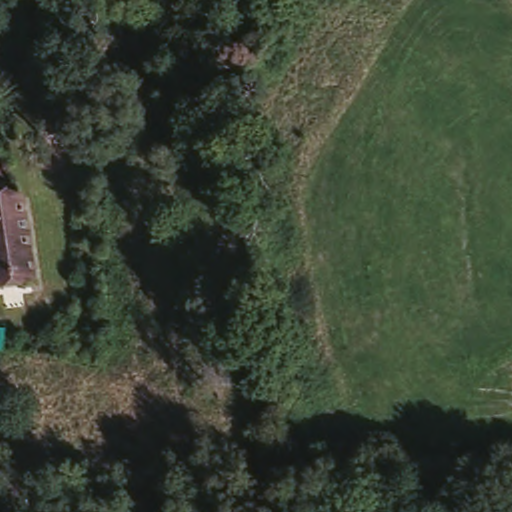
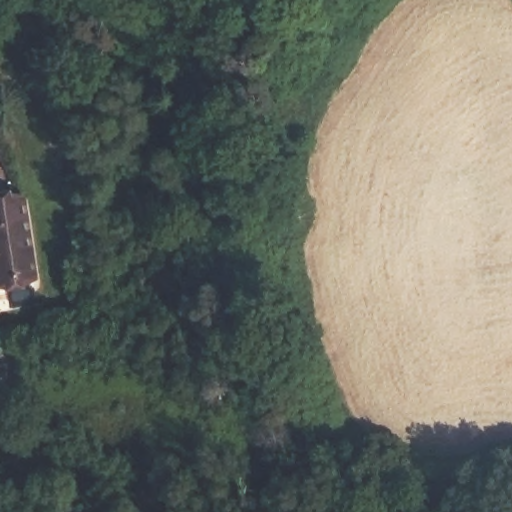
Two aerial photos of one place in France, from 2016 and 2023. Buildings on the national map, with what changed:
unchanged [(20,201),(30,278),(0,282),(0,203),(20,201)]

